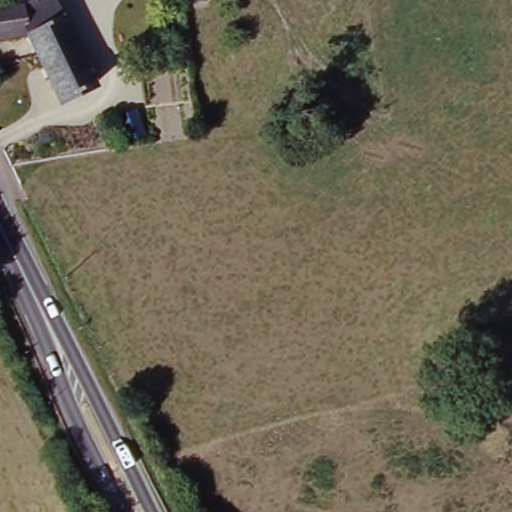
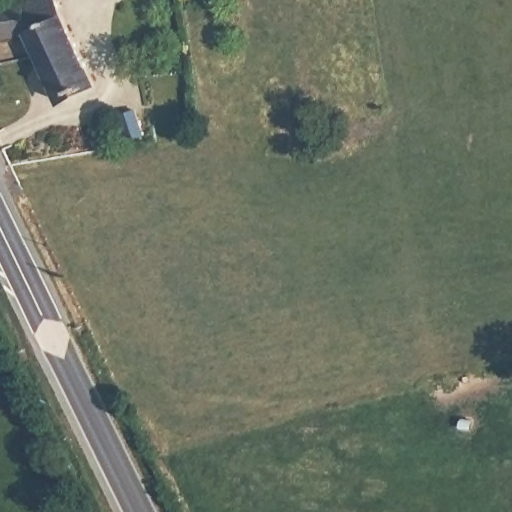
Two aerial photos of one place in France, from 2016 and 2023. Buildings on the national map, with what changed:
unchanged [(7,9),(39,2),(44,0),(63,0),(104,84),(67,102),(32,35),(0,41),(0,2),(5,1),(7,9)]
unchanged [(137,112),(146,136),(130,141),(122,118),(137,112)]

